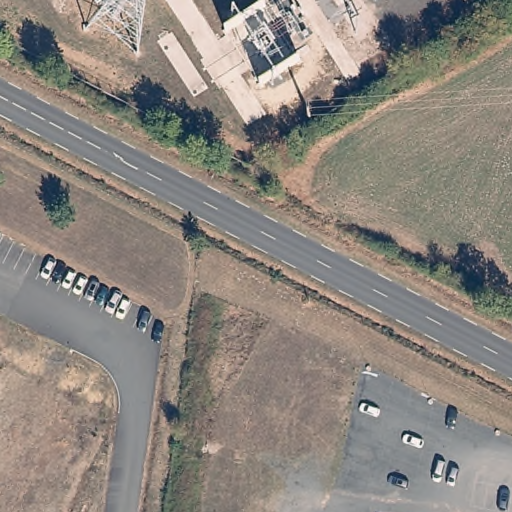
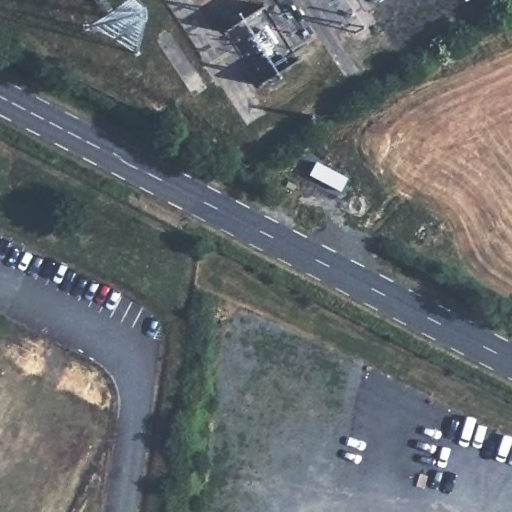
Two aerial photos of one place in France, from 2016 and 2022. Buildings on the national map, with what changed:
[]

